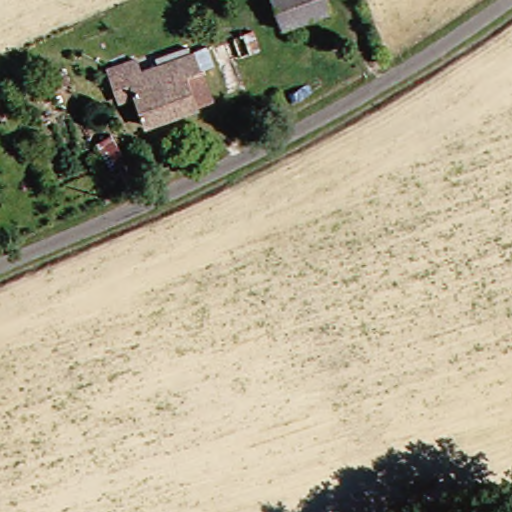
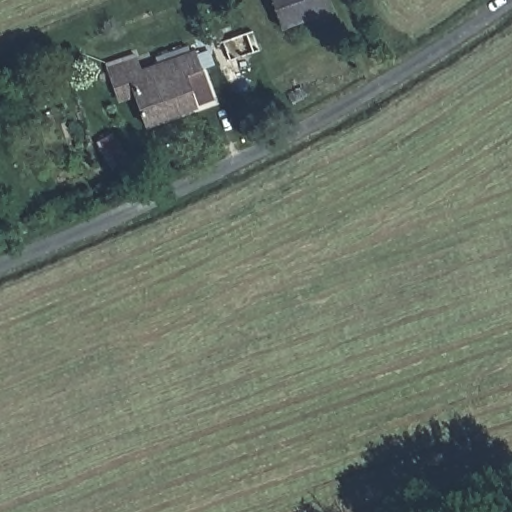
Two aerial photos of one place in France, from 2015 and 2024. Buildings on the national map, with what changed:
unchanged [(275,26),(265,0),(315,0),(319,11),(297,20),(275,26)]
unchanged [(179,59),(180,58),(229,40),(237,59),(185,77),(179,59)]
unchanged [(195,105),(131,130),(119,100),(102,105),(94,74),(117,65),(122,78),(179,59),(185,77),(195,105)]
unchanged [(87,135),(103,130),(110,154),(95,159),(87,135)]

